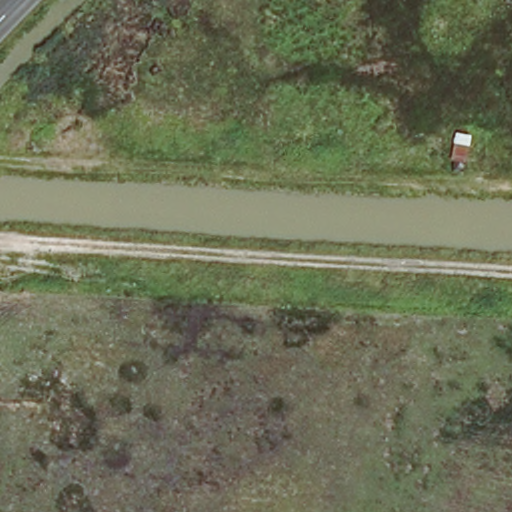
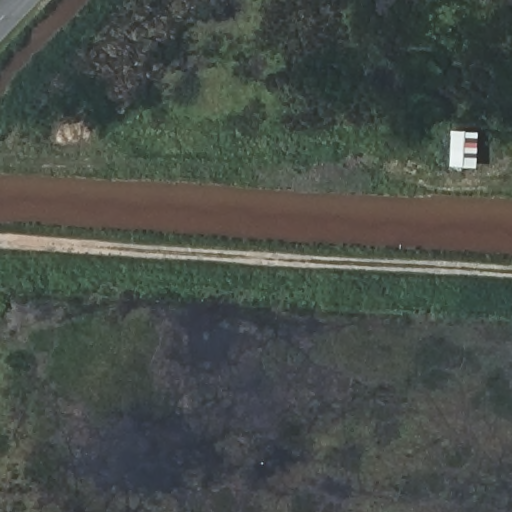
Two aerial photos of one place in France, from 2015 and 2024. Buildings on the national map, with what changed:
unchanged [(467,136),(462,169),(443,164),(450,134),(467,136)]

